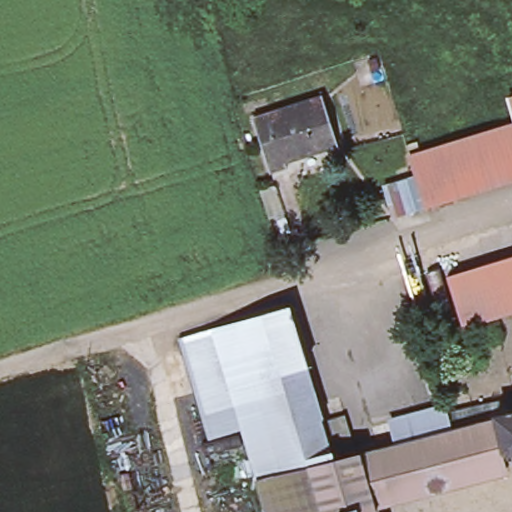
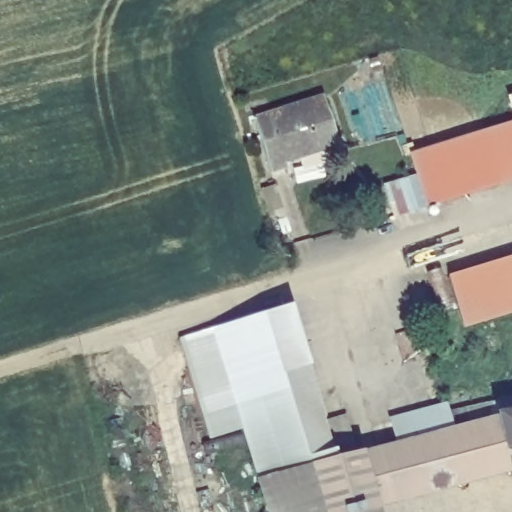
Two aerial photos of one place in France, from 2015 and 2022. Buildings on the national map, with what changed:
unchanged [(338,140),(284,157),(286,162),(270,167),(253,114),(322,91),(338,140)]
unchanged [(431,201),(415,149),(512,120),(512,176),(431,201)]
unchanged [(463,321),(448,272),(512,252),(512,305),(463,321)]
unchanged [(258,475),(244,427),(214,326),(288,302),(334,456),(258,475)]
unchanged [(244,427),(209,436),(181,337),(214,326),(244,427)]
unchanged [(451,426),(447,409),(512,395),(512,411),(495,414),(451,426)]
unchanged [(512,411),(512,450),(502,452),(495,414),(512,411)]
unchanged [(495,414),(502,452),(505,467),(462,478),(451,426),(495,414)]
unchanged [(451,426),(462,478),(375,501),(360,449),(451,426)]
unchanged [(360,449),(375,501),(343,512),(269,512),(258,475),(334,456),(360,449)]
unchanged [(343,512),(375,501),(378,512),(343,512)]

